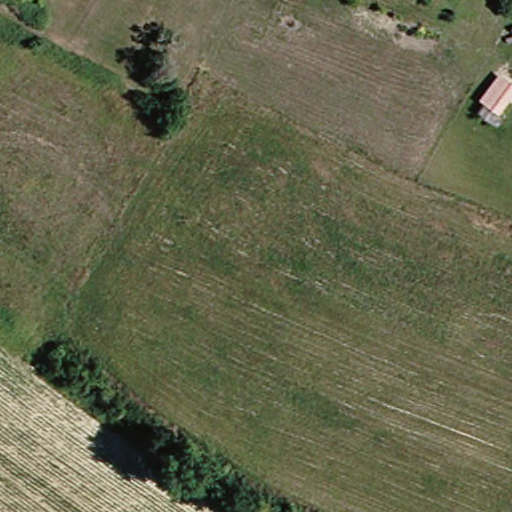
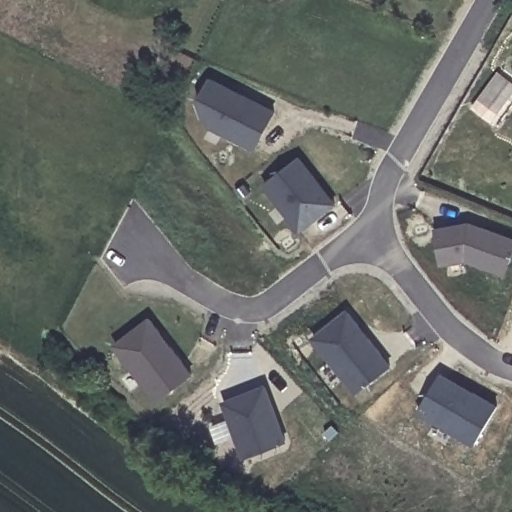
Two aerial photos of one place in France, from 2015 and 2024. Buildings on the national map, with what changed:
new [(512,85),(498,107),(479,94),(495,70),(512,80),(512,85)]
new [(209,128),(211,124),(202,120),(197,102),(210,78),(276,112),(256,153),(209,128)]
new [(338,205),(300,234),(263,185),(299,157),(338,205)]
new [(470,225),(471,232),(484,229),(512,240),(512,256),(506,273),(470,258),(445,263),(439,230),(470,225)]
new [(391,365),(360,390),(317,337),(349,312),(391,365)]
new [(158,403),(113,346),(150,318),(195,376),(158,403)]
new [(437,380),(469,399),(472,393),(497,408),(476,445),(419,411),(437,380)]
new [(287,441),(247,457),(226,402),(266,387),(287,441)]

